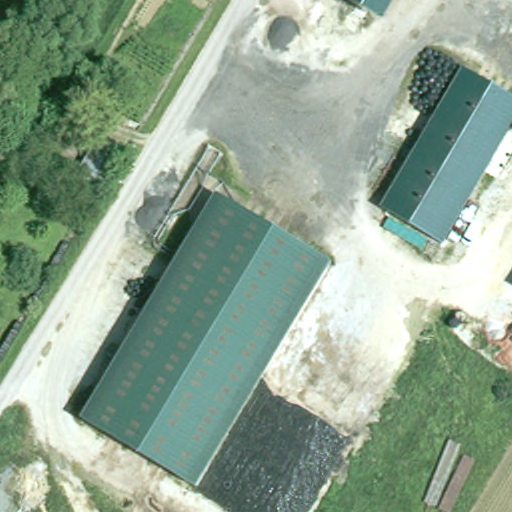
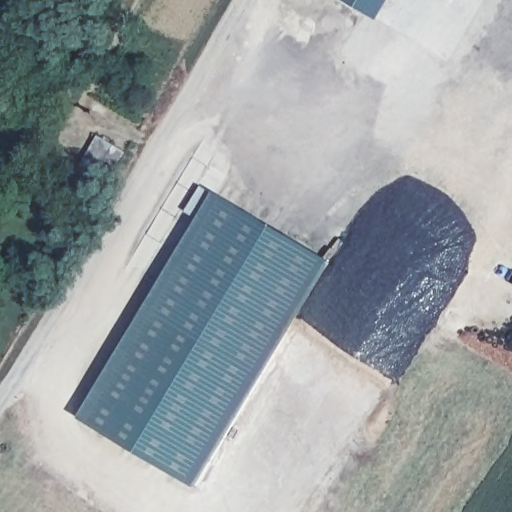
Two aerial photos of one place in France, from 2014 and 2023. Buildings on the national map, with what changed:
unchanged [(361,13),(339,0),(368,0),(361,13)]
unchanged [(376,23),(361,13),(368,0),(391,0),(376,23)]
demolished [(442,244),(379,204),(461,67),(512,95),(512,125),(442,244)]
unchanged [(113,181),(86,166),(105,135),(129,152),(113,181)]
unchanged [(193,484),(79,416),(214,192),(328,261),(193,484)]

